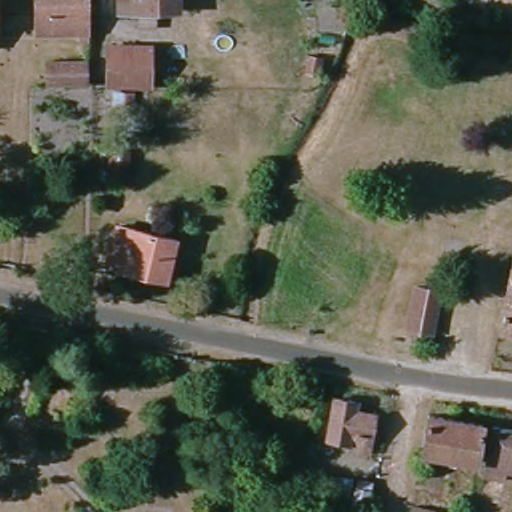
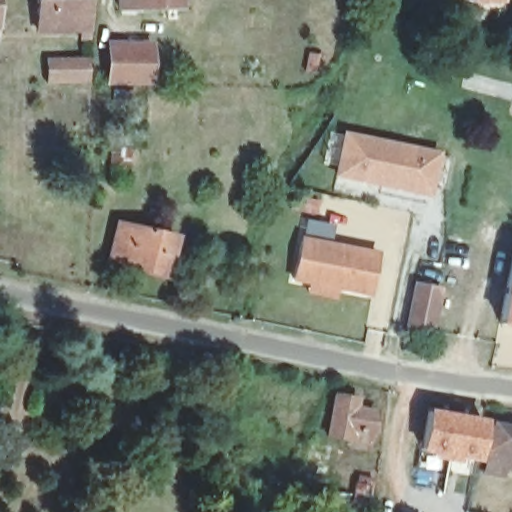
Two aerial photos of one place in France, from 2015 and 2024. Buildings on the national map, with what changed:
unchanged [(81,40),(81,31),(40,32),(39,0),(88,0),(89,40),(81,40)]
unchanged [(121,12),(121,0),(180,0),(180,10),(121,12)]
unchanged [(153,48),(153,86),(111,86),(110,47),(153,48)]
unchanged [(89,63),(89,83),(51,85),(51,65),(89,63)]
new [(333,177),(342,131),(441,152),(432,197),(333,177)]
unchanged [(115,184),(116,152),(142,152),(141,184),(115,184)]
demolished [(2,241),(0,241),(0,221),(2,221),(2,241)]
unchanged [(176,238),(169,280),(111,266),(118,225),(176,238)]
new [(292,281),(301,241),(376,258),(367,298),(334,290),(333,296),(332,300),(307,295),(309,285),(292,281)]
unchanged [(500,325),(512,265),(512,327),(500,325)]
unchanged [(440,290),(431,331),(405,325),(415,284),(440,290)]
unchanged [(376,415),(371,445),(330,438),(336,398),(358,402),(357,411),(376,415)]
unchanged [(476,460),(424,450),(430,413),(484,422),(476,460)]
unchanged [(505,477),(506,470),(487,466),(494,425),(512,429),(512,479),(505,477)]
unchanged [(355,475),(349,507),(330,503),(332,490),(336,491),(340,472),(355,475)]
unchanged [(375,480),(370,506),(357,504),(363,477),(375,480)]
demolished [(436,512),(416,512),(418,503),(437,507),(436,512)]
demolished [(447,510),(456,512),(447,512),(447,510)]

